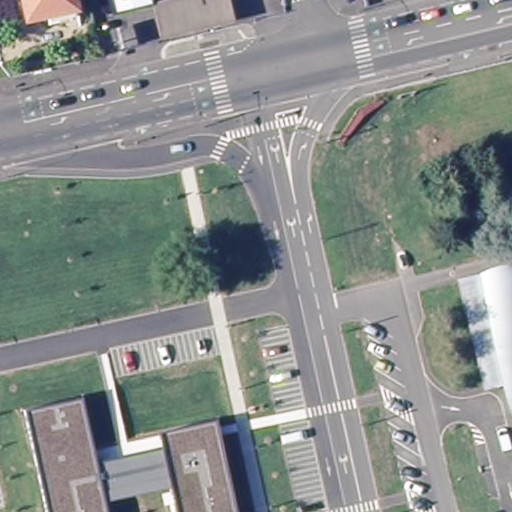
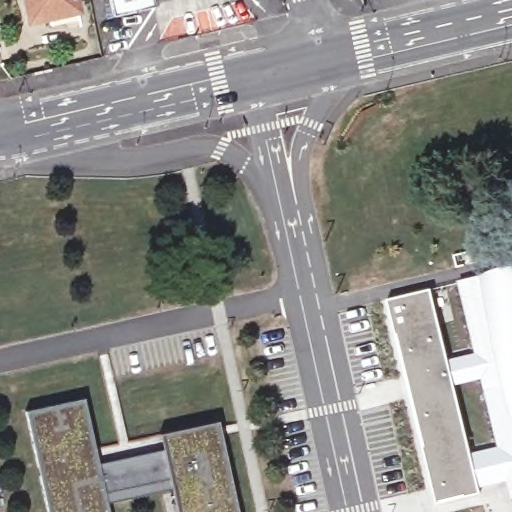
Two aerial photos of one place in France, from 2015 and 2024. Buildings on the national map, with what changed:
unchanged [(52,26),(30,31),(23,0),(76,0),(80,20),(75,21),(77,28),(54,33),(52,26)]
unchanged [(111,0),(154,0),(156,7),(115,16),(111,0)]
unchanged [(465,280),(490,275),(490,277),(512,271),(512,394),(510,385),(489,389),(465,280)]
new [(510,385),(512,394),(512,497),(507,480),(480,486),(481,491),(436,500),(388,300),(430,288),(448,357),(481,350),(489,389),(510,385)]
unchanged [(84,401),(98,466),(165,451),(164,436),(219,427),(236,512),(179,512),(172,478),(105,494),(110,512),(48,512),(27,413),(84,401)]

